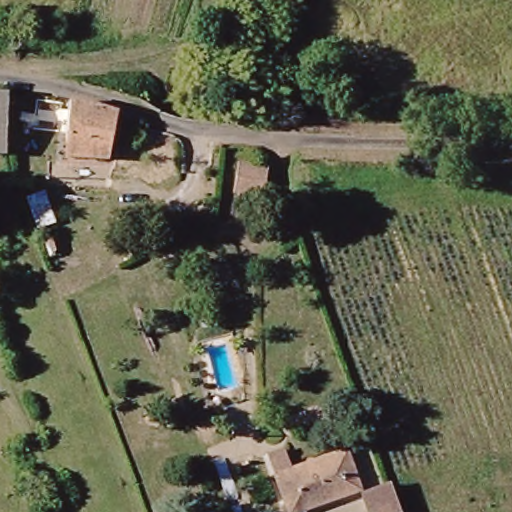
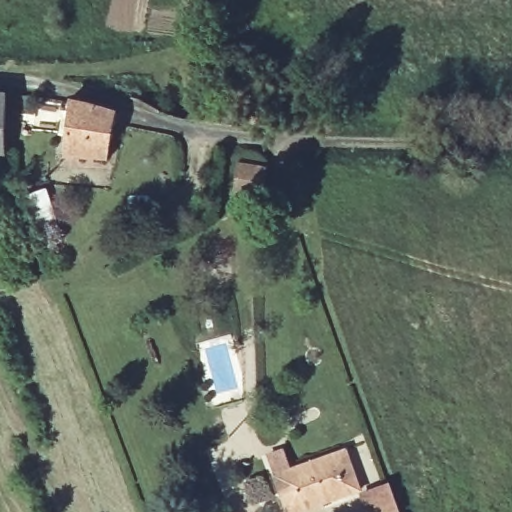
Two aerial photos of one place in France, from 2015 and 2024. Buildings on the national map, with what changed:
unchanged [(5,89),(4,152),(0,152),(0,89),(5,89)]
unchanged [(113,114),(108,161),(65,160),(66,102),(113,114)]
unchanged [(234,183),(241,155),(270,158),(263,187),(234,183)]
unchanged [(278,494),(269,470),(344,445),(355,481),(312,494),(281,504),(278,494)]
unchanged [(380,512),(360,512),(353,490),(381,480),(390,508),(380,512)]

